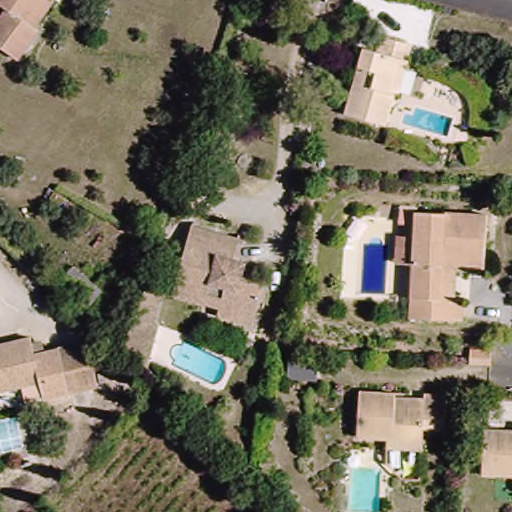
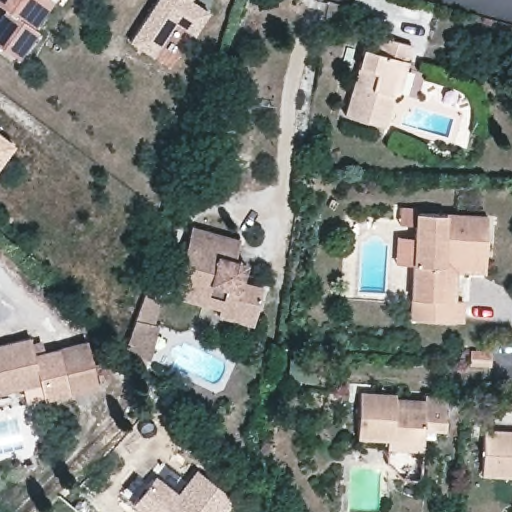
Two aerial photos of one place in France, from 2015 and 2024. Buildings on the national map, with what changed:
unchanged [(41,35),(20,67),(0,54),(0,13),(3,9),(0,8),(0,0),(49,0),(54,3),(34,28),(41,35)]
new [(195,0),(208,9),(192,34),(174,23),(151,56),(128,41),(155,0),(195,0)]
unchanged [(342,117),(359,47),(373,50),(376,36),(411,47),(407,59),(397,99),(390,99),(382,125),(342,117)]
new [(14,144),(0,162),(0,134),(14,144)]
unchanged [(441,213),(445,209),(488,210),(483,274),(457,274),(467,318),(408,318),(412,269),(389,262),(394,234),(412,234),(418,213),(441,213)]
unchanged [(237,319),(220,315),(222,304),(191,296),(171,292),(174,281),(190,225),(242,240),(233,280),(265,289),(257,314),(253,324),(237,319)]
unchanged [(127,339),(147,285),(162,291),(153,320),(160,323),(150,355),(127,339)]
unchanged [(38,402),(36,384),(0,392),(0,342),(26,336),(30,352),(85,339),(96,387),(38,402)]
unchanged [(362,394),(396,396),(396,401),(429,402),(429,397),(447,398),(445,433),(425,432),(425,442),(390,441),(360,439),(362,394)]
unchanged [(485,433),(512,436),(512,478),(482,478),(485,433)]
unchanged [(424,471),(389,469),(390,441),(425,442),(424,471)]
new [(131,506),(154,476),(177,493),(196,470),(234,501),(225,512),(138,512),(131,506)]

